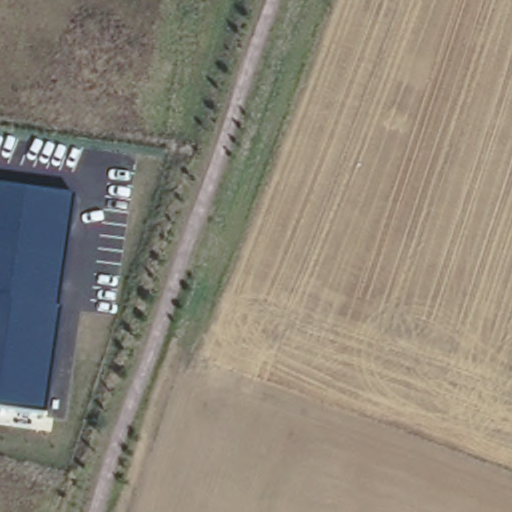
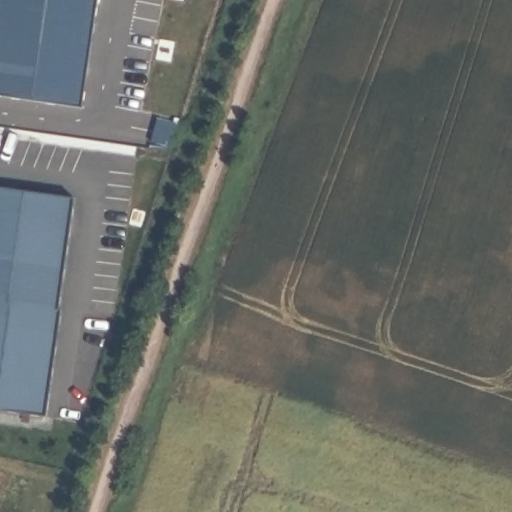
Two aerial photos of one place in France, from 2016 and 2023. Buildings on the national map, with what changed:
new [(0,97),(0,0),(98,0),(84,108),(0,97)]
unchanged [(44,417),(0,410),(0,189),(74,200),(44,417)]

